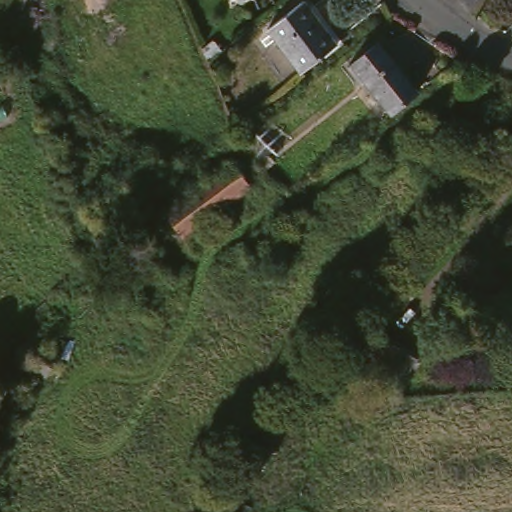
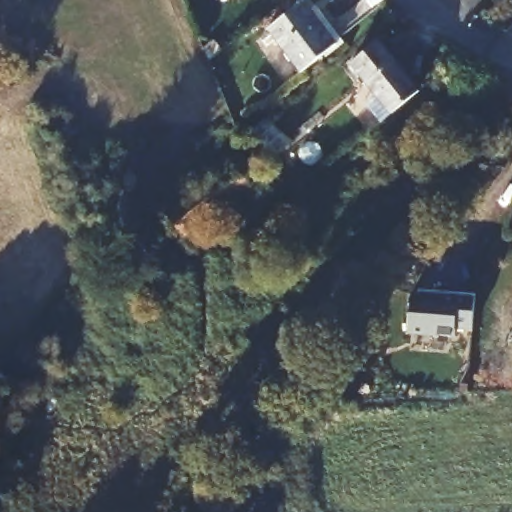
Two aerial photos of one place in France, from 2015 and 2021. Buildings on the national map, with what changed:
unchanged [(308,0),(309,0),(341,42),(305,70),(271,28),(308,0)]
unchanged [(401,118),(375,86),(371,87),(358,71),(388,48),(430,95),(401,118)]
unchanged [(240,136),(249,128),(271,149),(260,159),(237,138),(240,136)]
unchanged [(255,186),(188,236),(169,211),(237,161),(255,186)]
new [(475,299),(471,331),(455,327),(453,338),(408,334),(410,292),(417,293),(417,290),(475,294),(475,299)]
demolished [(376,334),(415,357),(405,375),(366,351),(376,334)]

